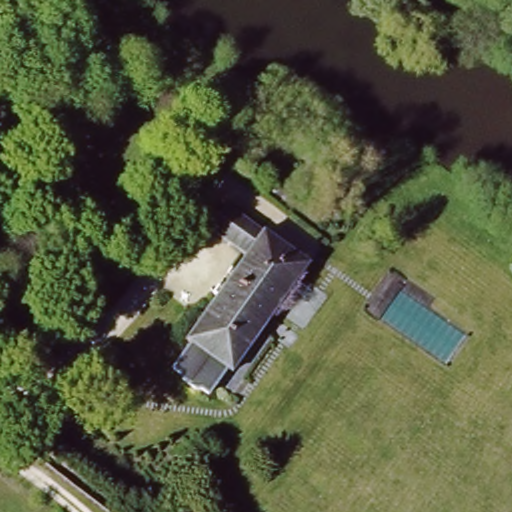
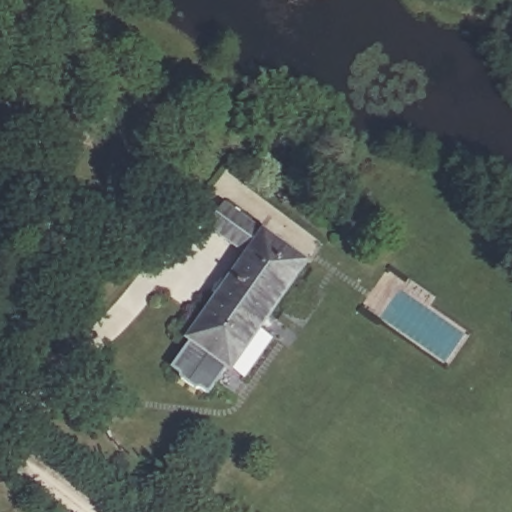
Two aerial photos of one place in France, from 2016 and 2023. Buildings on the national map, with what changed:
unchanged [(282,325),(242,406),(175,349),(250,253),(214,228),(231,205),(311,261),(270,313),(282,325)]

